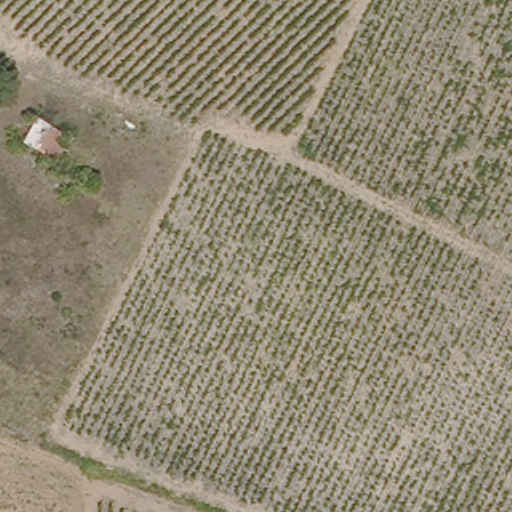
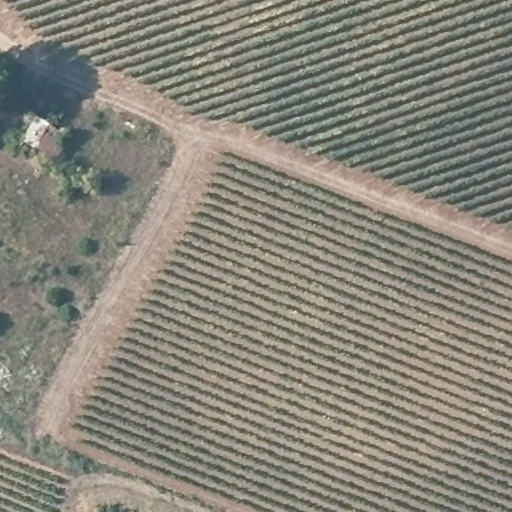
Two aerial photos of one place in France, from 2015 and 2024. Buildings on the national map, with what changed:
unchanged [(65,136),(51,163),(24,145),(39,120),(65,136)]

